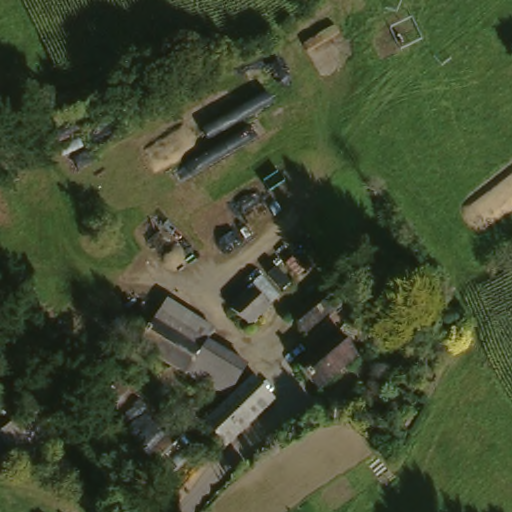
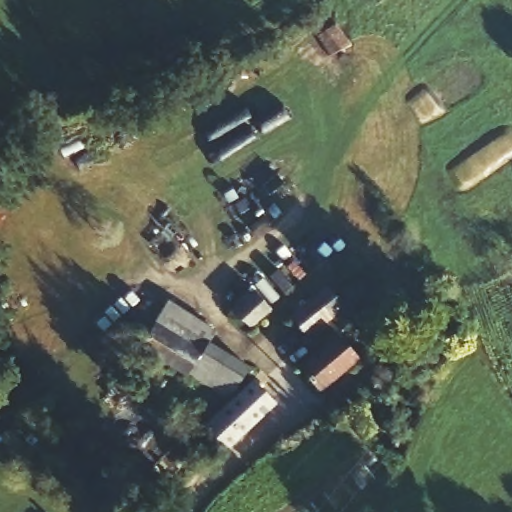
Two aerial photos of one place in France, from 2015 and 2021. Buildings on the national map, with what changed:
unchanged [(257,323),(242,303),(263,285),(278,304),(257,323)]
unchanged [(295,315),(332,285),(348,305),(312,336),(295,315)]
unchanged [(210,339),(205,348),(156,320),(172,296),(217,326),(210,339)]
unchanged [(250,365),(229,395),(144,341),(156,320),(205,348),(210,339),(250,365)]
unchanged [(322,385),(303,361),(342,328),(362,353),(322,385)]
unchanged [(417,337),(402,368),(386,361),(400,330),(417,337)]
unchanged [(211,416),(260,375),(280,398),(232,439),(211,416)]
unchanged [(25,410),(57,438),(32,460),(1,432),(25,410)]

